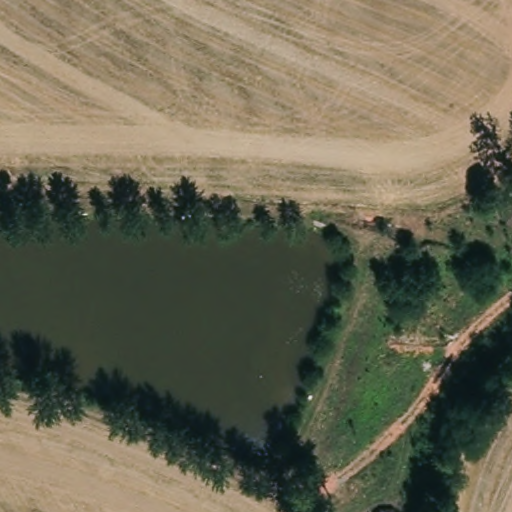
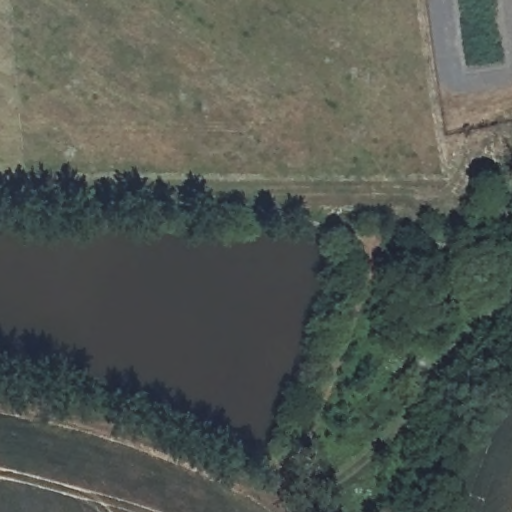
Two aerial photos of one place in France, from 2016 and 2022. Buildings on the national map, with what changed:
[]

